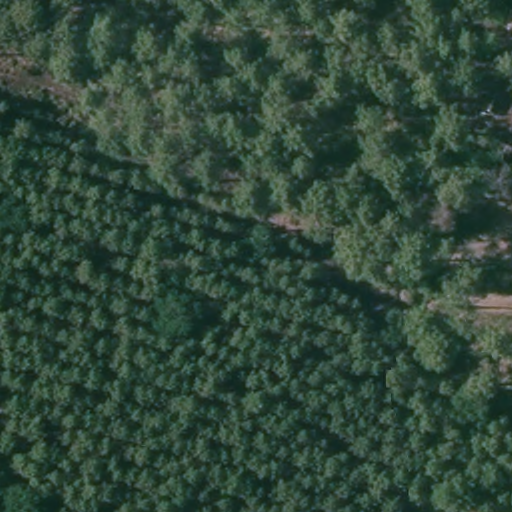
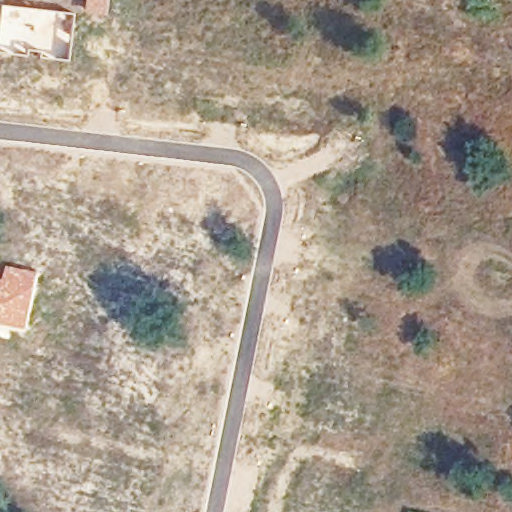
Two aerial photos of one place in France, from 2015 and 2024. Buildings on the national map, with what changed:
new [(37,51),(25,49),(24,55),(0,52),(0,3),(71,11),(66,60),(36,56),(37,51)]
new [(31,332),(0,325),(0,280),(7,281),(11,268),(41,275),(38,288),(41,288),(31,332)]

